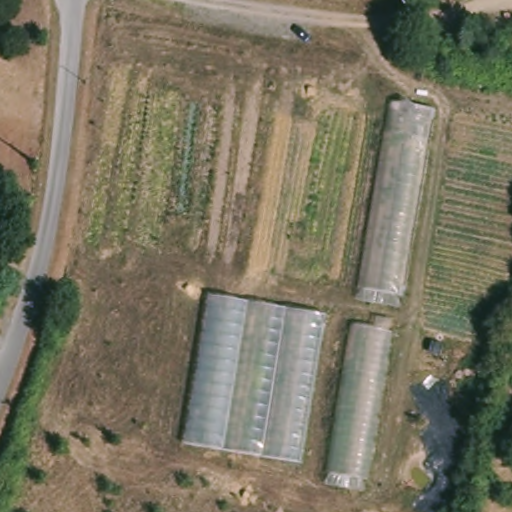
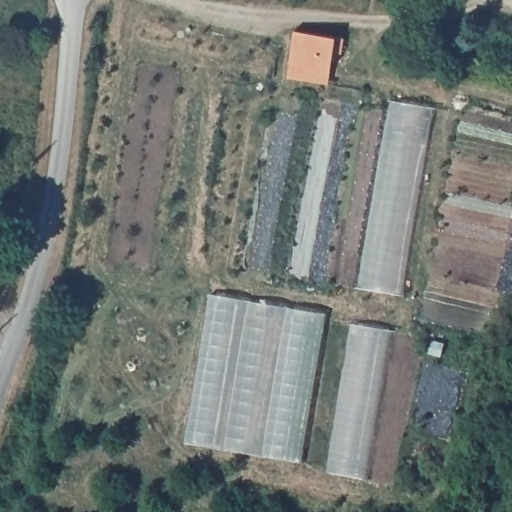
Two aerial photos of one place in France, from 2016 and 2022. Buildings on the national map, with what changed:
new [(286,78),(288,62),(293,30),(334,36),(344,37),(342,54),(332,53),(330,68),(328,84),(286,78)]
unchanged [(395,102),(432,109),(398,308),(362,301),(395,102)]
unchanged [(212,295),(325,315),(299,463),(188,444),(212,295)]
unchanged [(359,323),(390,330),(360,492),(329,486),(359,323)]

